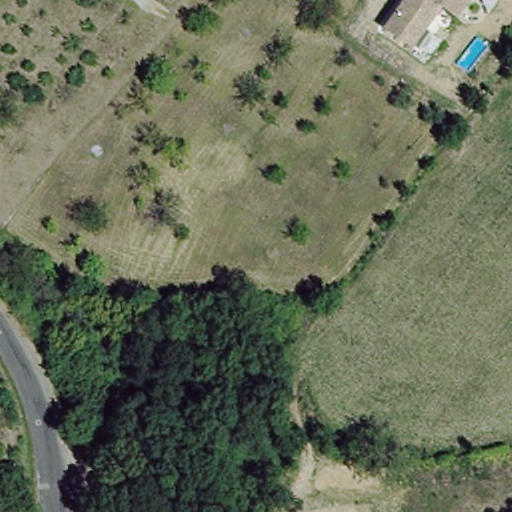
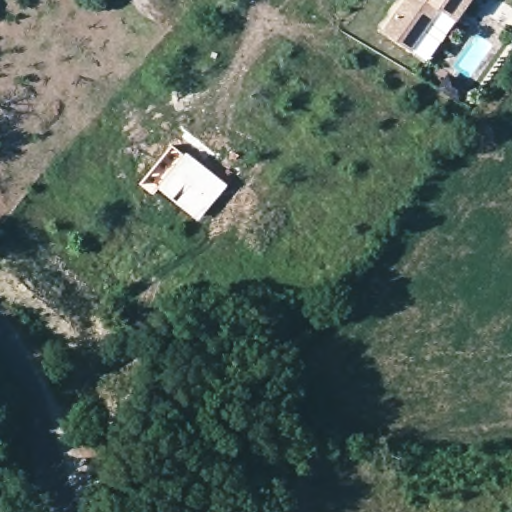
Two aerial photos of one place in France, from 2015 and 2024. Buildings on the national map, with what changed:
unchanged [(445,8),(415,49),(389,30),(411,0),(474,0),(460,19),(445,8)]
new [(182,154),(184,151),(226,184),(197,221),(157,188),(151,194),(139,182),(170,146),(182,154)]

